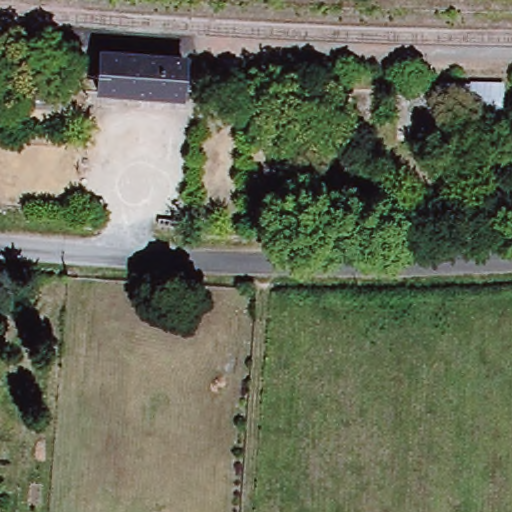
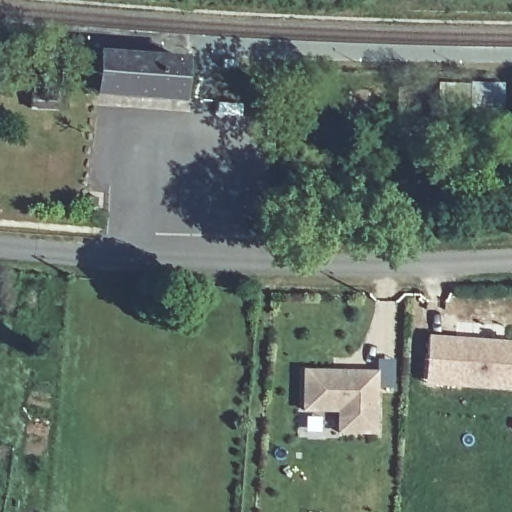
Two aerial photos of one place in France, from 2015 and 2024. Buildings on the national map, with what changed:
unchanged [(197,69),(195,95),(79,89),(81,61),(197,69)]
new [(424,383),(429,336),(512,342),(512,390),(512,391),(424,383)]
new [(304,368),(377,371),(376,432),(338,431),(339,410),(303,409),(304,368)]

